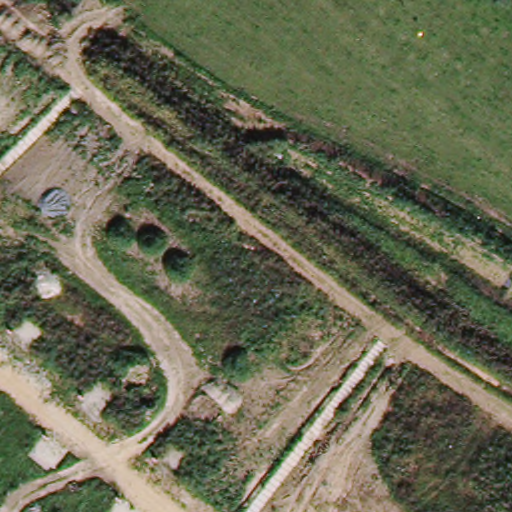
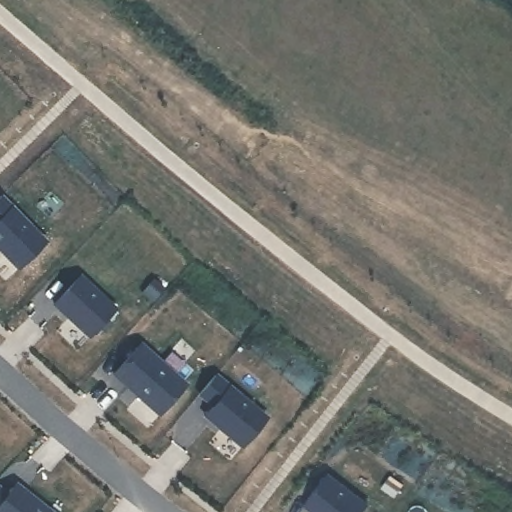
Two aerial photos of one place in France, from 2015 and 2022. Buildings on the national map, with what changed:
new [(17,269),(0,252),(0,198),(44,242),(17,269)]
new [(78,276),(113,309),(87,337),(52,305),(78,276)]
new [(130,353),(126,350),(131,345),(135,348),(138,344),(184,385),(157,415),(111,375),(130,353)]
new [(213,375),(265,420),(240,448),(203,417),(212,407),(197,395),(213,375)]
new [(367,504),(361,512),(313,512),(306,506),(329,475),(367,504)]
new [(14,484),(49,512),(0,512),(0,490),(6,495),(14,484)]

